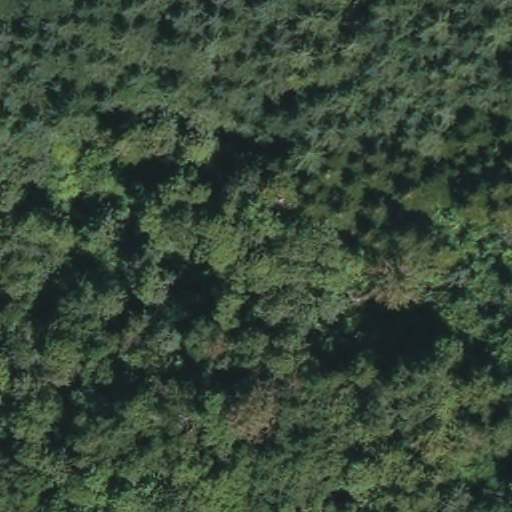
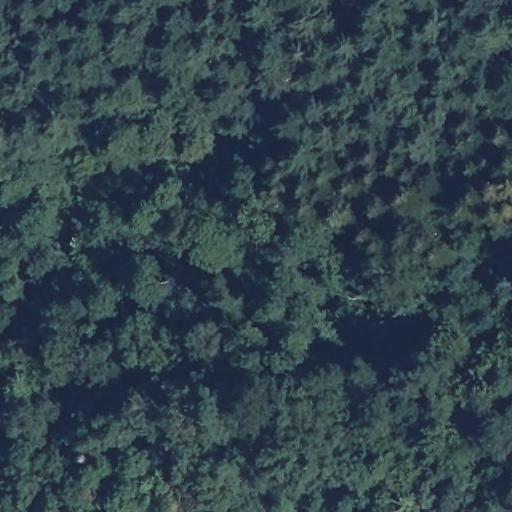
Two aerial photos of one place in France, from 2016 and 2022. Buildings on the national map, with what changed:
[]

